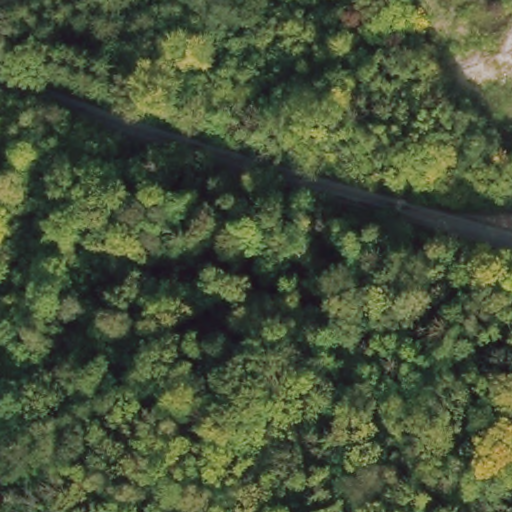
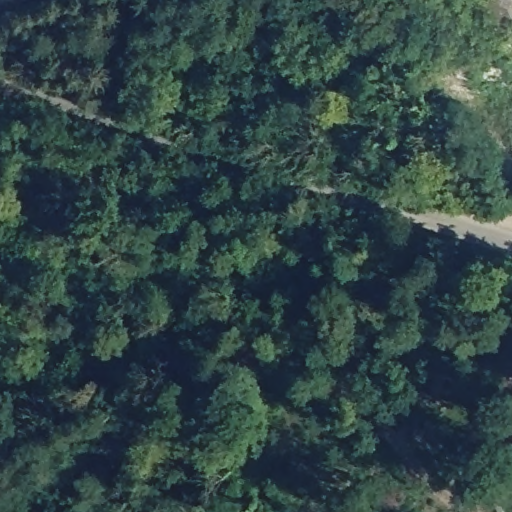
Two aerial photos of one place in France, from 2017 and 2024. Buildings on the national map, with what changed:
unchanged [(390,81),(395,96),(383,102),(376,89),(390,81)]

